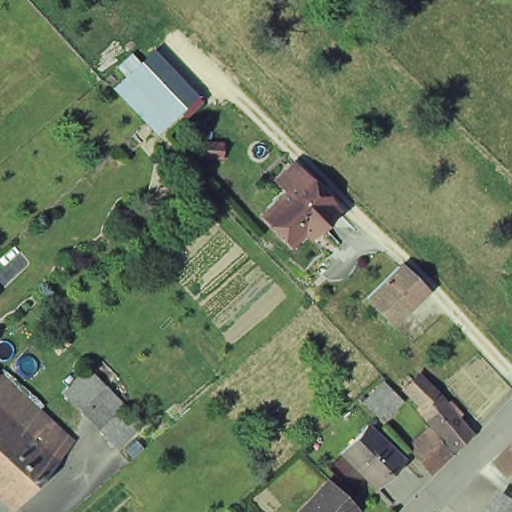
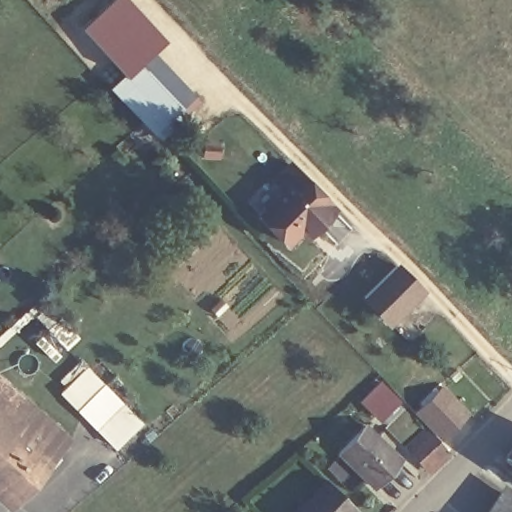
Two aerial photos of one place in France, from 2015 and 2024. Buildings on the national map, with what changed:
new [(157,54),(149,46),(123,71),(85,26),(115,0),(131,0),(170,42),(157,54)]
unchanged [(137,58),(149,46),(196,98),(183,111),(137,58)]
unchanged [(105,86),(137,58),(183,111),(152,138),(105,86)]
unchanged [(310,233),(307,229),(295,240),(267,212),(280,199),(291,189),(282,179),(297,164),(337,206),(322,220),(312,231),(310,233)]
unchanged [(385,319),(364,296),(396,265),(418,288),(385,319)]
unchanged [(93,427),(99,421),(80,402),(62,384),(82,365),(100,383),(118,401),(120,404),(134,418),(110,442),(93,427)]
unchanged [(415,407),(398,389),(414,374),(430,393),(432,391),(443,403),(447,399),(457,411),(452,415),(468,433),(452,448),(415,407)]
unchanged [(35,413),(15,435),(0,451),(0,380),(35,413)]
unchanged [(363,402),(382,384),(397,400),(377,417),(363,402)]
unchanged [(15,435),(35,413),(68,443),(57,456),(62,460),(45,479),(40,474),(12,506),(0,495),(0,451),(15,435)]
unchanged [(370,425),(405,459),(378,486),(343,452),(370,425)]
unchanged [(430,429),(450,450),(428,469),(409,449),(430,429)]
unchanged [(512,475),(502,465),(505,461),(512,454),(512,475)]
unchanged [(326,475),(353,502),(344,512),(291,512),(326,475)]
unchanged [(512,500),(512,512),(504,512),(512,500)]

